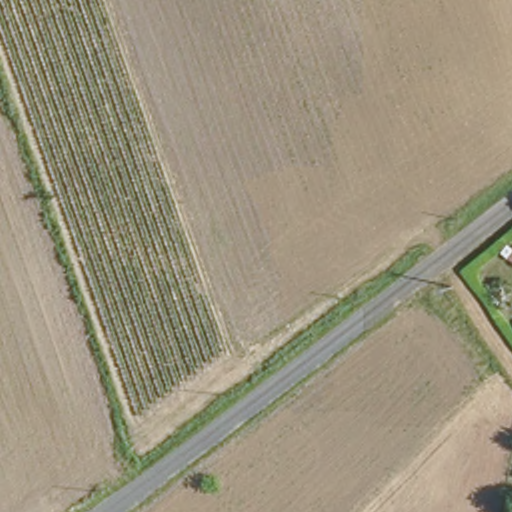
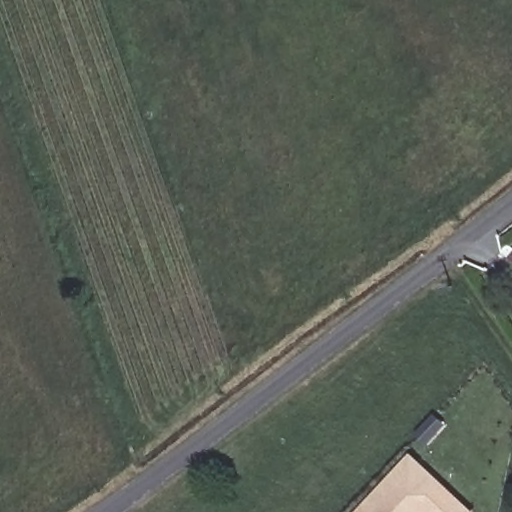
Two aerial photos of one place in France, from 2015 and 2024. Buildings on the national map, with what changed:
new [(472,512),(359,512),(415,455),(472,512)]

